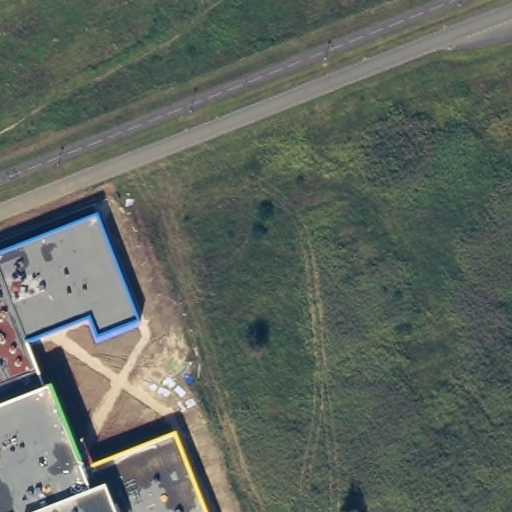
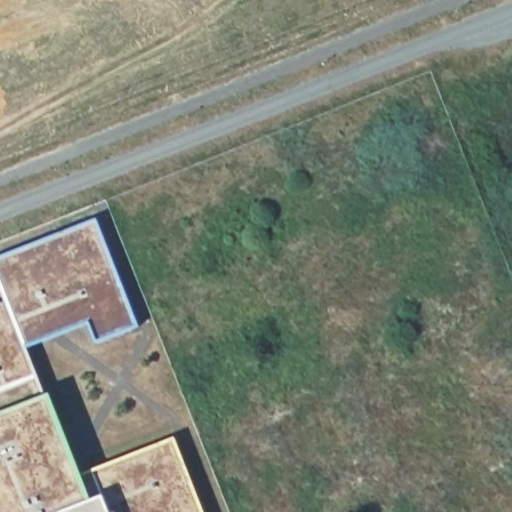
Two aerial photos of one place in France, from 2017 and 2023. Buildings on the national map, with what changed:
unchanged [(97,341),(90,321),(25,346),(45,396),(50,394),(72,451),(82,443),(92,469),(175,437),(204,512),(0,512),(0,257),(97,219),(139,325),(97,341)]

